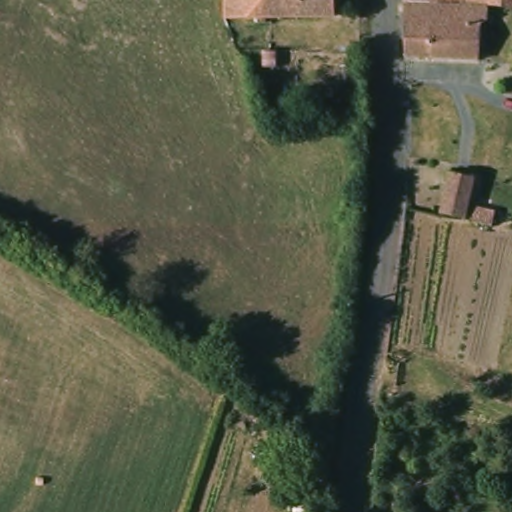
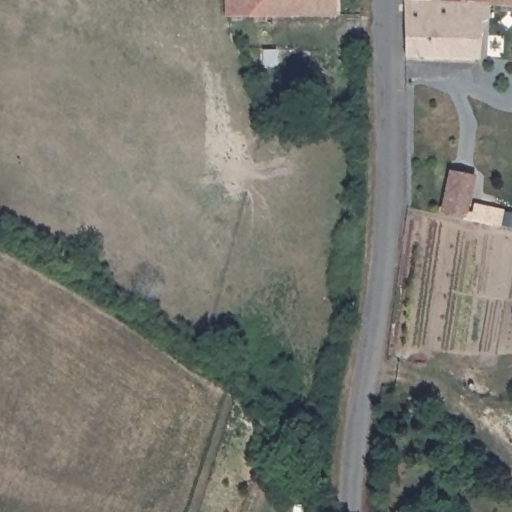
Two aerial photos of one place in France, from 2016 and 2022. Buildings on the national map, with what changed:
unchanged [(228,17),(227,11),(226,0),(335,0),(336,16),(228,17)]
unchanged [(404,0),(512,0),(512,7),(490,5),(490,3),(468,2),(466,4),(462,4),(404,0)]
unchanged [(489,18),(482,24),(479,57),(406,56),(406,55),(404,0),(462,4),(466,4),(468,2),(490,3),(490,5),(489,18)]
unchanged [(457,219),(458,216),(437,212),(445,173),(467,178),(462,204),(512,214),(512,229),(457,219)]
unchanged [(286,493),(259,474),(270,458),(297,476),(286,493)]

